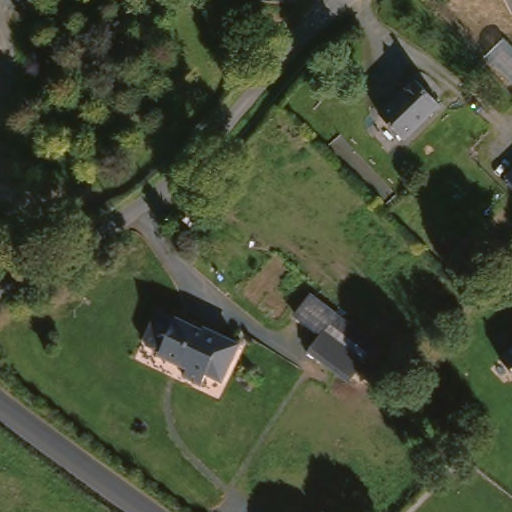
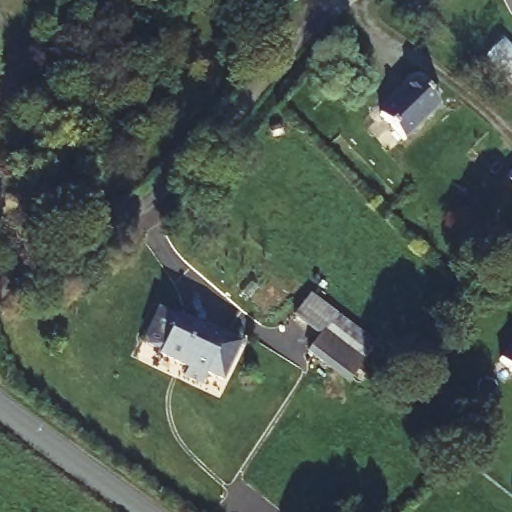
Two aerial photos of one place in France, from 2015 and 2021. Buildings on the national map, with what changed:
unchanged [(438,104),(403,140),(377,116),(411,79),(438,104)]
unchanged [(508,175),(512,170),(512,179),(508,175)]
unchanged [(219,381),(204,373),(199,384),(181,376),(185,368),(157,354),(158,351),(144,344),(142,339),(156,309),(174,318),(201,330),(202,327),(237,344),(219,381)]
unchanged [(377,351),(369,362),(351,384),(311,353),(321,339),(328,330),(336,319),(377,351)]
unchanged [(501,356),(512,345),(512,367),(501,356)]

